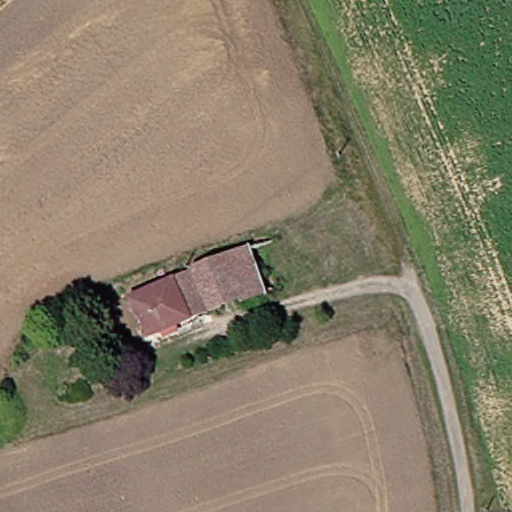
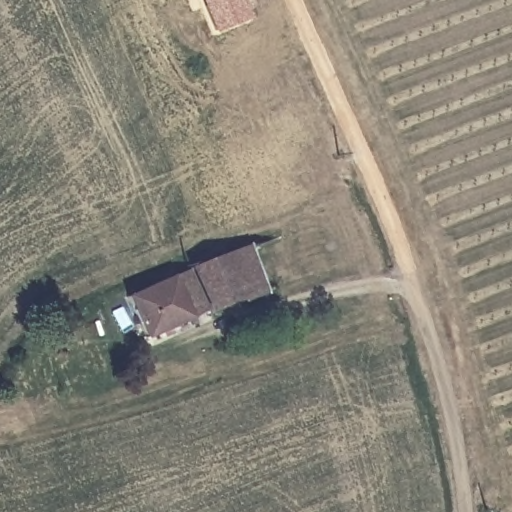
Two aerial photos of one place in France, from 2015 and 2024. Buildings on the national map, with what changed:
new [(242,0),(250,20),(213,34),(199,0),(242,0)]
unchanged [(268,295),(214,313),(198,267),(229,256),(230,258),(252,250),(268,295)]
unchanged [(148,342),(130,300),(191,272),(208,315),(148,342)]

